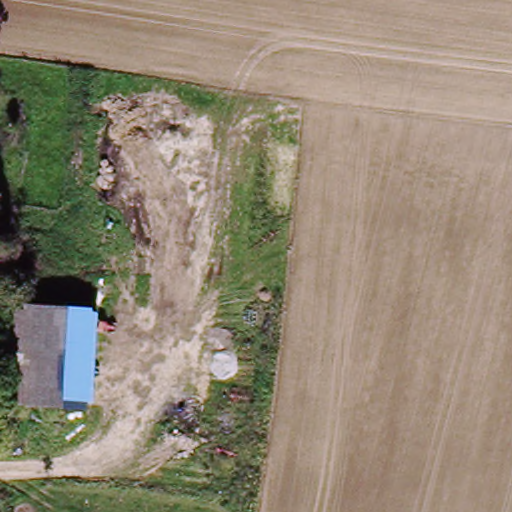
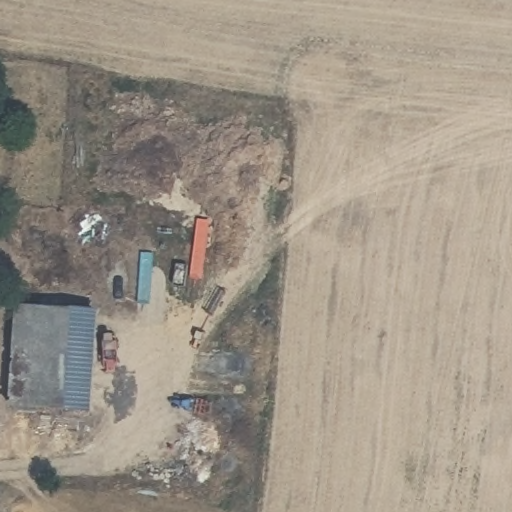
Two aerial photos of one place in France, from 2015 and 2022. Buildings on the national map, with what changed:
unchanged [(4,408),(9,305),(102,310),(99,417),(4,408)]

